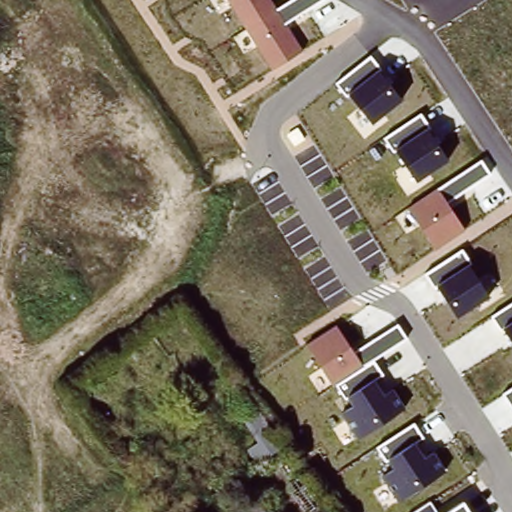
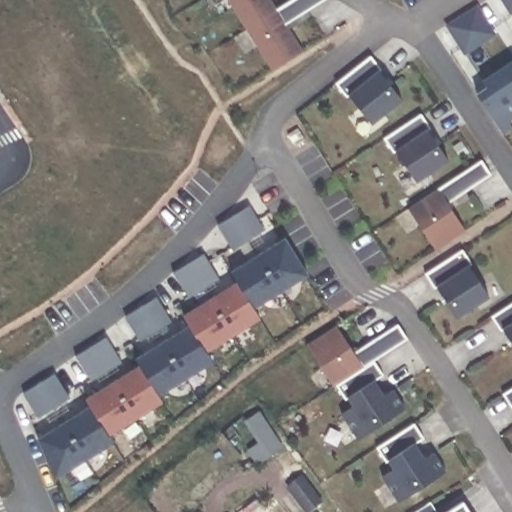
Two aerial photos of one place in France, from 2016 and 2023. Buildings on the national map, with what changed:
unchanged [(291,0),(324,0),(285,24),(302,50),(273,70),(230,0),(271,0),(277,9),(291,0)]
new [(502,0),(512,0),(512,13),(511,14),(502,0)]
new [(465,51),(446,23),(475,4),(495,33),(465,51)]
unchanged [(370,56),(380,70),(378,71),(401,100),(371,124),(348,95),(346,96),(335,83),(370,56)]
new [(508,123),(510,125),(502,130),(476,93),(486,85),(483,79),(512,60),(512,120),(508,123)]
unchanged [(420,114),(430,129),(426,130),(446,160),(415,183),(395,151),(393,153),(383,138),(420,114)]
unchanged [(490,174),(447,203),(465,230),(435,249),(408,207),(480,160),(490,174)]
new [(255,307),(261,318),(207,352),(213,362),(160,394),(163,403),(109,437),(113,443),(55,479),(38,439),(90,406),(86,400),(139,367),(135,360),(189,325),(183,315),(235,283),(230,272),(285,237),(308,274),(255,307)]
unchanged [(462,250),(470,264),(468,265),(488,298),(455,317),(436,287),(435,288),(425,274),(462,250)]
unchanged [(512,303),(512,344),(502,328),(500,329),(491,316),(512,303)]
unchanged [(407,339),(373,360),(383,375),(375,381),(384,394),(392,389),(405,408),(357,438),(342,414),(351,406),(347,399),(345,399),(335,384),(333,386),(306,344),(336,325),(355,353),(397,324),(407,339)]
unchanged [(512,387),(512,408),(503,393),(512,387)]
new [(256,469),(247,449),(258,442),(244,419),(259,409),(285,447),(256,469)]
unchanged [(424,438),(415,444),(424,459),(433,453),(445,471),(398,501),(382,476),(392,469),(386,461),(376,447),(413,423),(424,438)]
unchanged [(470,512),(446,512),(462,501),(470,512)]
unchanged [(430,502),(438,512),(414,512),(430,502)]

